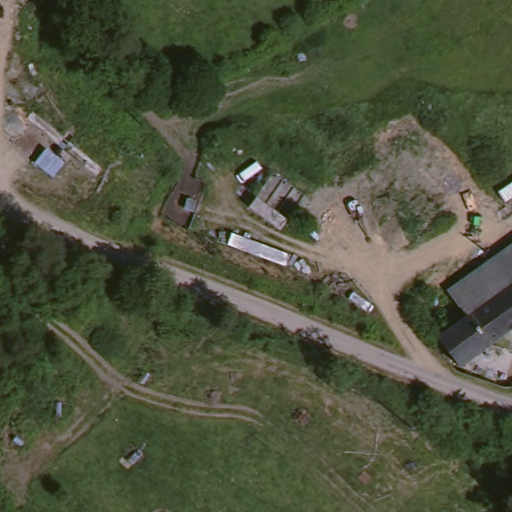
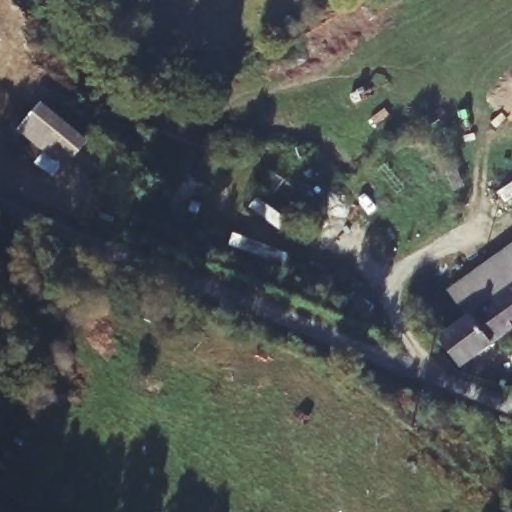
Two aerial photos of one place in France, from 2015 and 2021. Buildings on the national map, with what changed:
new [(89,142),(66,169),(62,167),(54,177),(37,164),(46,154),(17,132),(42,102),(89,142)]
unchanged [(470,319),(452,292),(512,249),(512,335),(471,367),(451,343),(470,319)]

